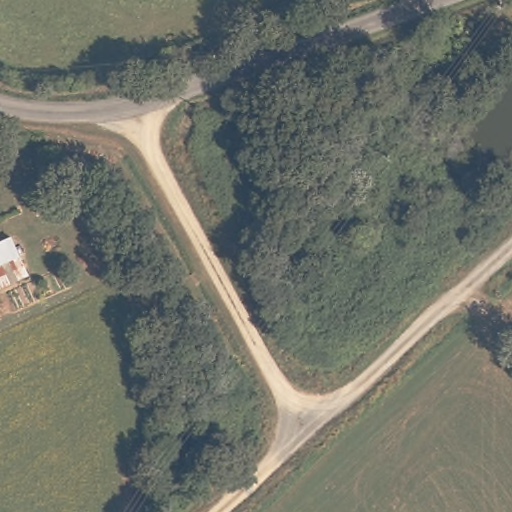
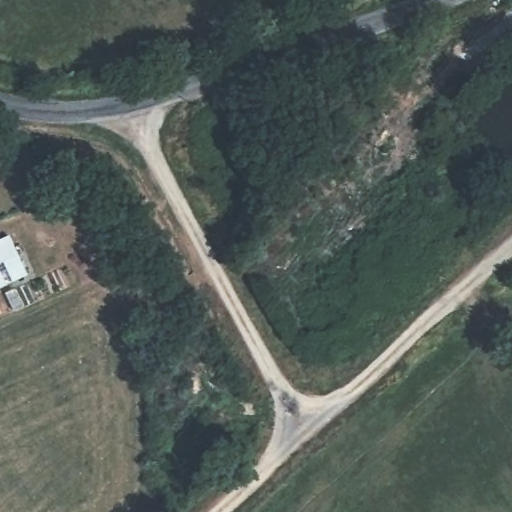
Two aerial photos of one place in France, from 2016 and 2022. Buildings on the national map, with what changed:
unchanged [(10,232),(29,273),(0,285),(0,237),(10,232)]

